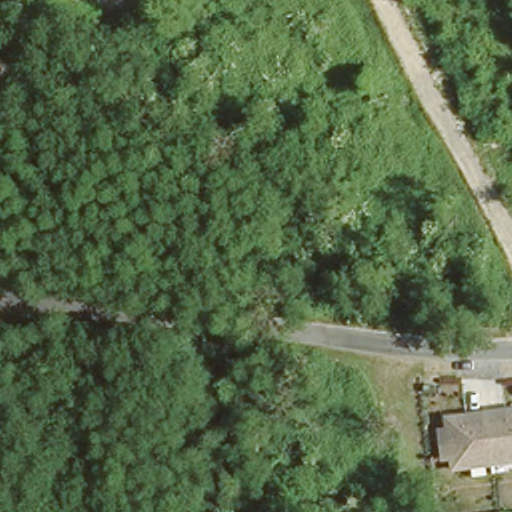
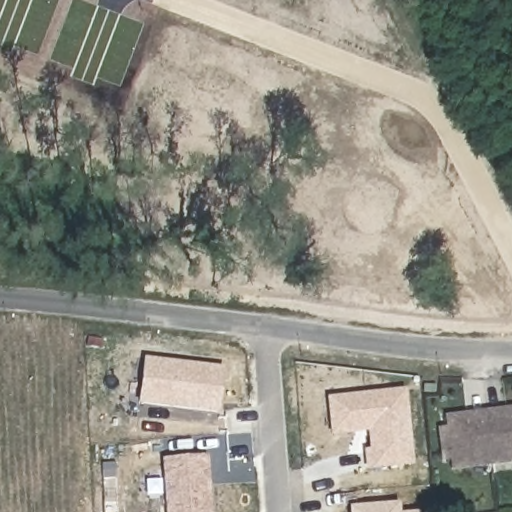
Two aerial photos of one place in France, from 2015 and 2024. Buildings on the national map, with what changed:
new [(219,413),(138,404),(143,357),(222,366),(219,413)]
new [(406,389),(414,465),(367,470),(364,450),(370,449),(368,431),(331,436),(327,397),(406,389)]
unchanged [(452,471),(450,461),(442,462),(438,432),(446,431),(445,421),(445,420),(512,412),(512,463),(459,470),(452,471)]
new [(166,512),(161,459),(208,455),(212,512),(166,512)]

